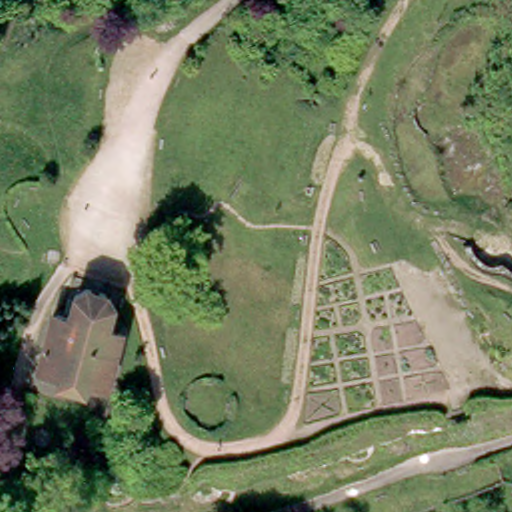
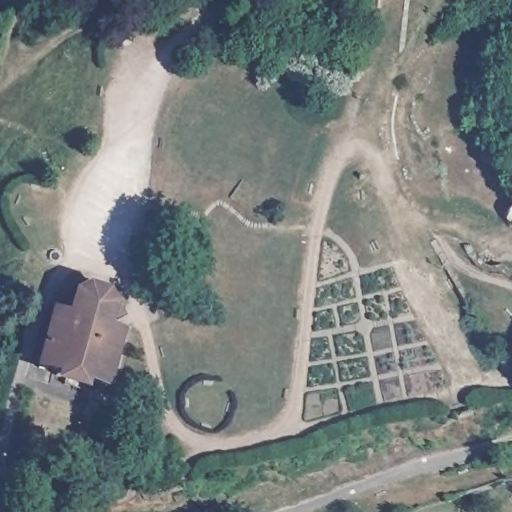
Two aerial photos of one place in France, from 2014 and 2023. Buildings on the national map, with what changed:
unchanged [(0,0),(3,0),(0,2),(0,0)]
unchanged [(60,369),(41,364),(51,328),(55,329),(52,323),(55,315),(61,311),(71,314),(77,293),(90,286),(107,291),(115,303),(108,327),(123,331),(108,384),(90,379),(88,384),(58,375),(60,369)]

